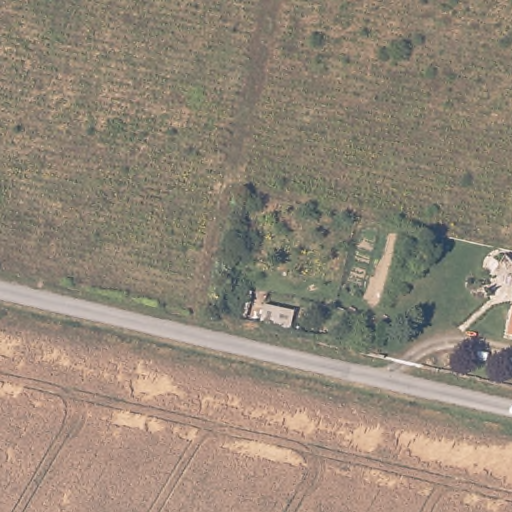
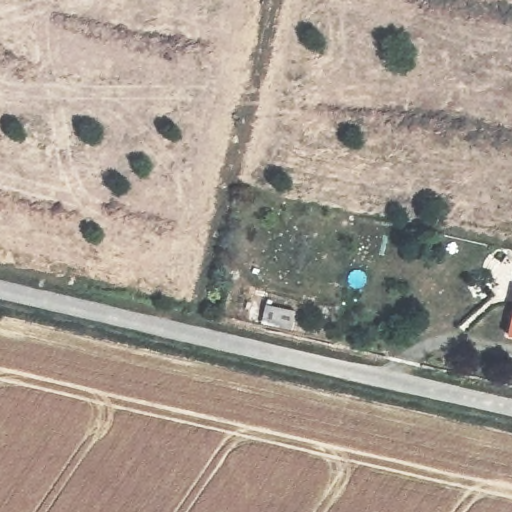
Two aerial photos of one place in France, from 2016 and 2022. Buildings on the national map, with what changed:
unchanged [(512,314),(512,332),(507,331),(512,314)]

